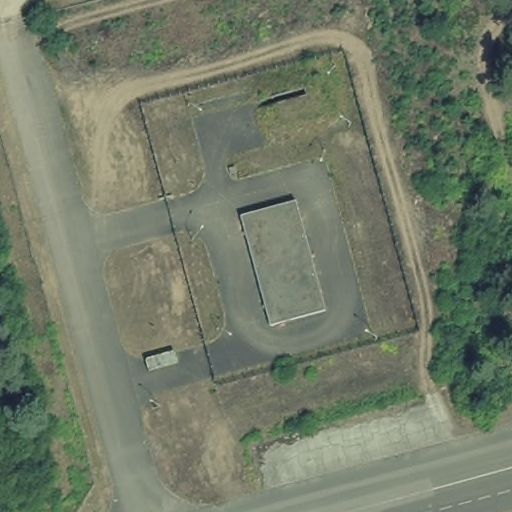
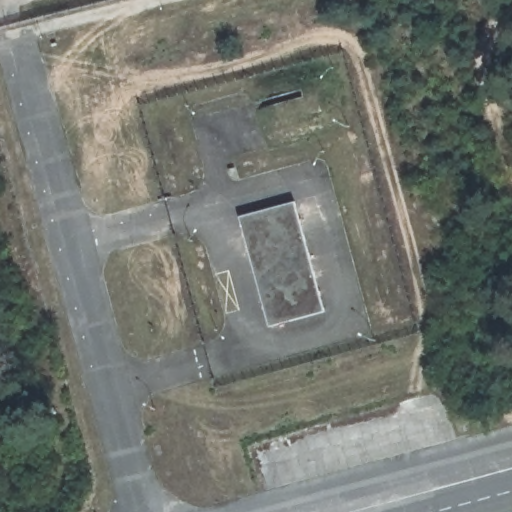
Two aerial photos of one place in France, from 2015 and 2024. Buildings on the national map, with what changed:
unchanged [(294,200),(324,307),(270,323),(240,214),(294,200)]

